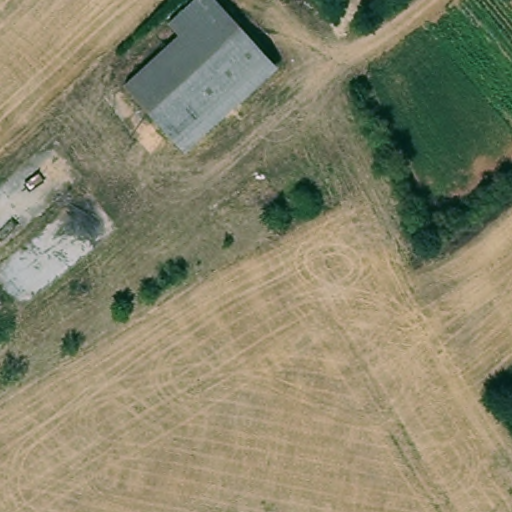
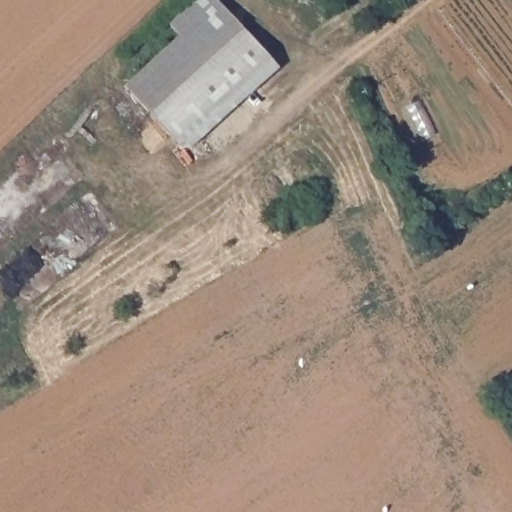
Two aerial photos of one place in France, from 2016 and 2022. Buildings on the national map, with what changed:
unchanged [(189,0),(216,0),(277,67),(181,155),(123,84),(180,34),(164,22),(189,0)]

